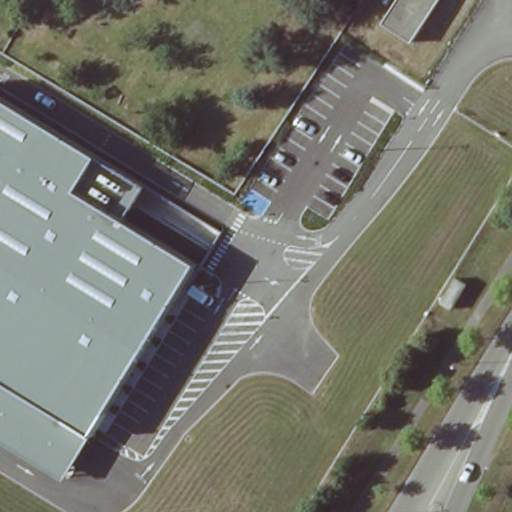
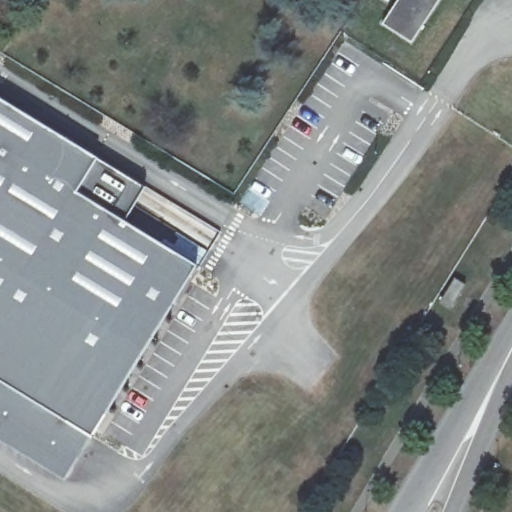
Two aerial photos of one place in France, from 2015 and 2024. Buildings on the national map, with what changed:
unchanged [(398,0),(439,0),(412,42),(383,24),(398,0)]
unchanged [(65,480),(0,440),(0,98),(148,185),(126,220),(197,263),(91,436),(65,480)]

